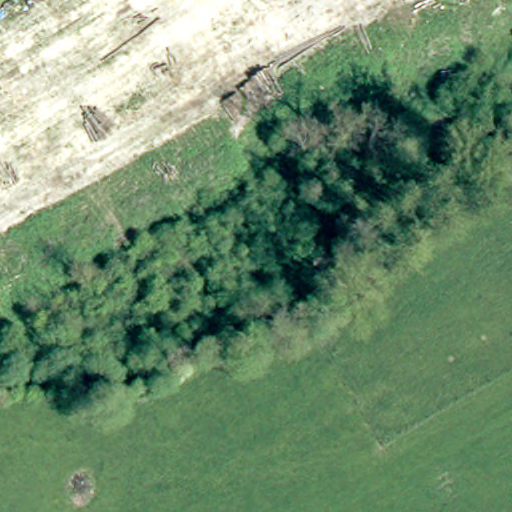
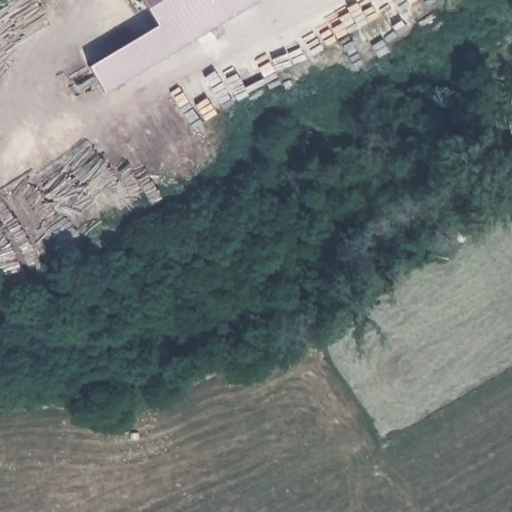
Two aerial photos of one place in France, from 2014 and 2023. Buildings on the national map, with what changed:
new [(256,0),(105,91),(90,65),(157,25),(142,0),(256,0)]
demolished [(486,0),(512,0),(512,4),(493,14),(486,0)]

